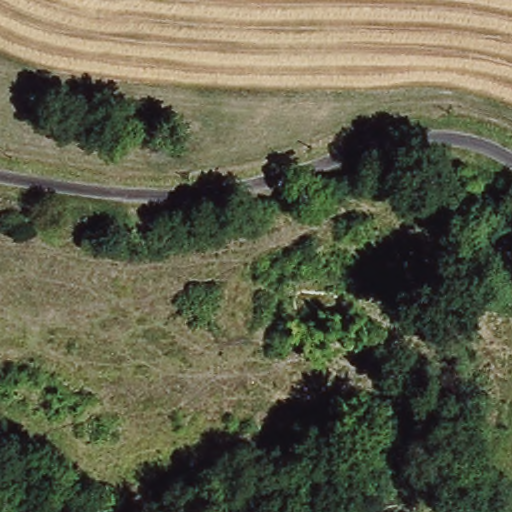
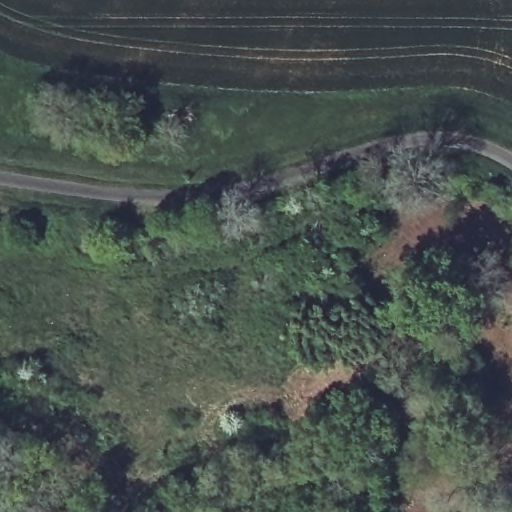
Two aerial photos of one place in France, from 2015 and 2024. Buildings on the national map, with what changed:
[]

